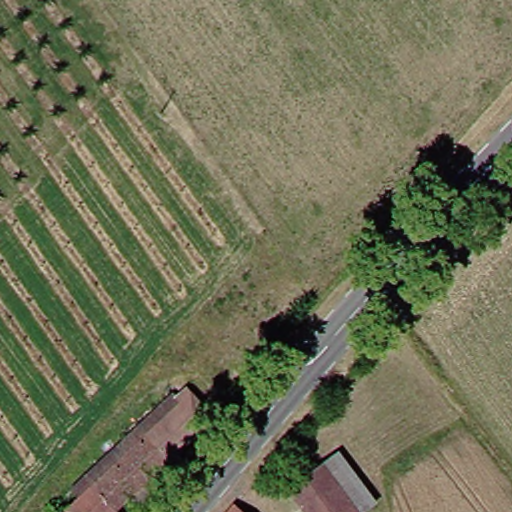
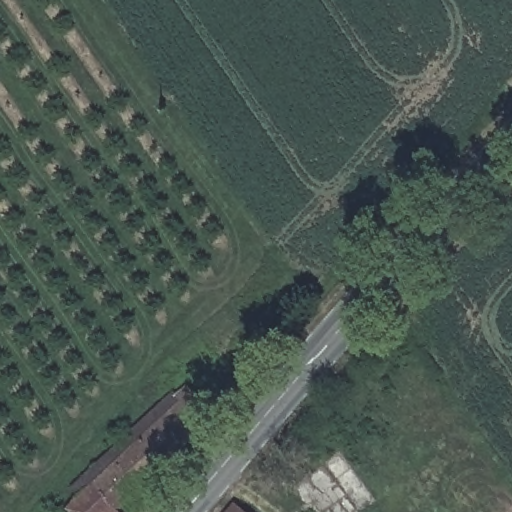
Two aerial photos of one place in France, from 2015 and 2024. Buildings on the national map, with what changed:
unchanged [(191,384),(195,387),(204,381),(207,385),(87,499),(80,492),(191,384)]
unchanged [(69,502),(80,492),(87,499),(207,385),(229,414),(135,504),(144,512),(78,512),(69,502)]
demolished [(360,492),(372,510),(378,505),(383,512),(312,512),(294,490),(357,447),(378,479),(360,492)]
unchanged [(267,512),(246,512),(255,501),(267,512)]

